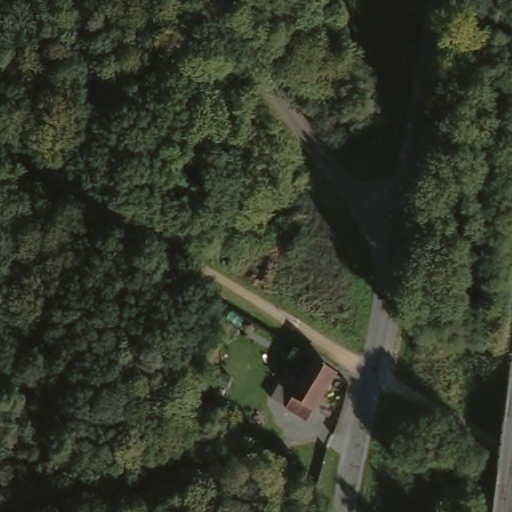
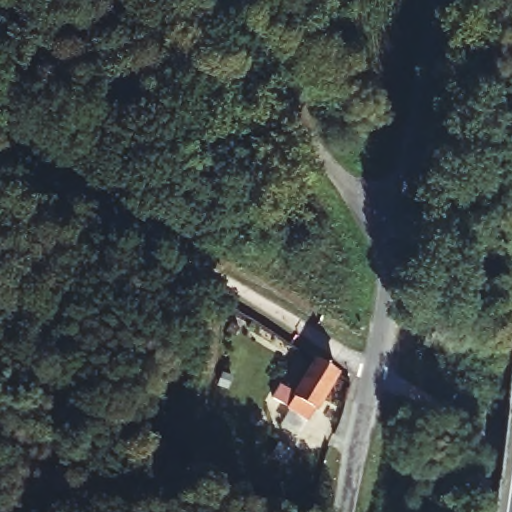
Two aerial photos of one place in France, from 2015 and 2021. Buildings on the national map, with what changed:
unchanged [(333,378),(309,421),(272,400),(280,386),(298,395),(313,367),(333,377),(333,378)]

